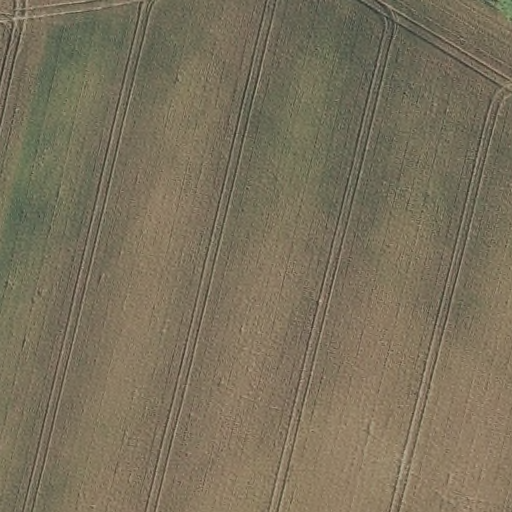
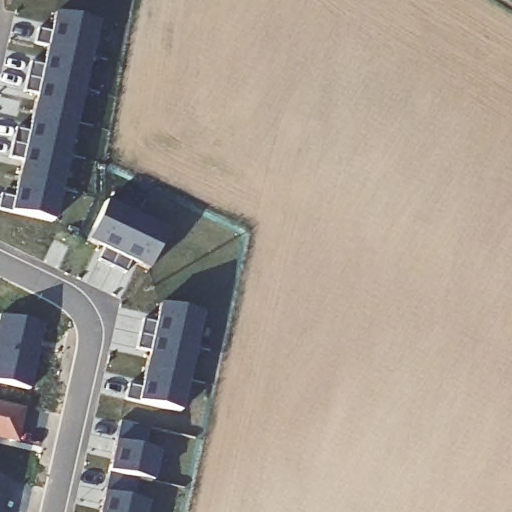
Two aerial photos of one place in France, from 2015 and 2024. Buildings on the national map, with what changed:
new [(36,30),(49,33),(53,14),(95,23),(87,57),(32,44),(36,30)]
new [(28,61),(41,64),(46,48),(87,57),(80,88),(25,76),(28,61)]
new [(80,88),(72,122),(30,112),(35,93),(22,90),(25,76),(80,88)]
new [(13,129),(27,132),(30,112),(72,122),(65,156),(10,143),(13,129)]
new [(20,161),(7,158),(10,143),(65,156),(57,189),(16,180),(20,161)]
new [(0,211),(0,196),(12,198),(16,180),(57,189),(50,222),(0,211)]
new [(112,267),(98,261),(105,249),(87,241),(105,202),(136,217),(112,267)]
new [(167,231),(148,270),(132,262),(125,274),(112,267),(136,217),(167,231)]
new [(142,319),(155,322),(160,304),(201,313),(194,346),(138,333),(142,319)]
new [(42,328),(27,393),(0,387),(0,319),(42,328)]
new [(148,351),(135,348),(138,333),(194,346),(187,378),(145,369),(148,351)]
new [(127,385),(140,388),(145,369),(187,378),(179,412),(124,400),(127,385)]
new [(25,409),(18,444),(0,440),(0,404),(25,409)]
new [(113,445),(155,454),(149,484),(107,475),(113,445)]
new [(7,481),(0,512),(0,480),(7,481)]
new [(145,504),(143,512),(98,512),(102,495),(145,504)]

